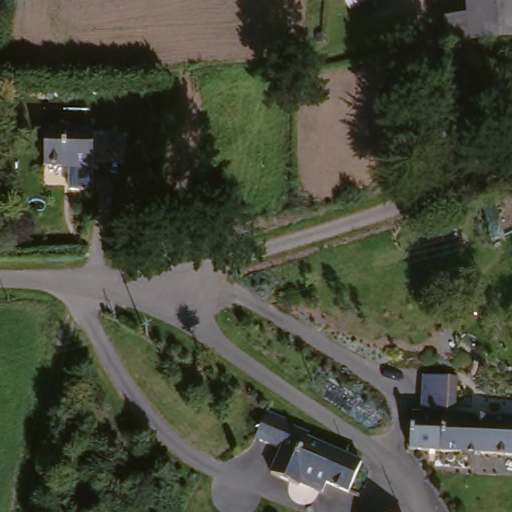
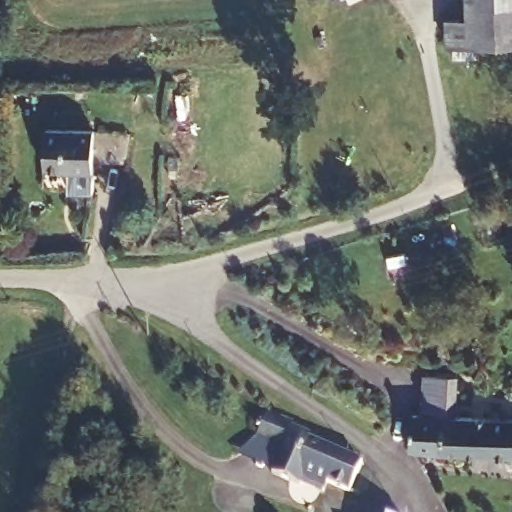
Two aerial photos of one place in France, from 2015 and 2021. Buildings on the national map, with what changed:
unchanged [(464,23),(463,0),(512,0),(512,45),(465,47),(443,48),(442,24),(464,23)]
unchanged [(91,133),(90,176),(61,174),(61,187),(41,185),(42,133),(91,133)]
unchanged [(453,383),(451,421),(512,423),(512,461),(406,455),(408,419),(418,419),(420,381),(453,383)]
unchanged [(318,499),(296,489),(294,491),(266,480),(278,453),(252,442),(263,419),(288,429),(287,431),(304,440),(303,443),(358,468),(344,498),(323,488),(318,499)]

